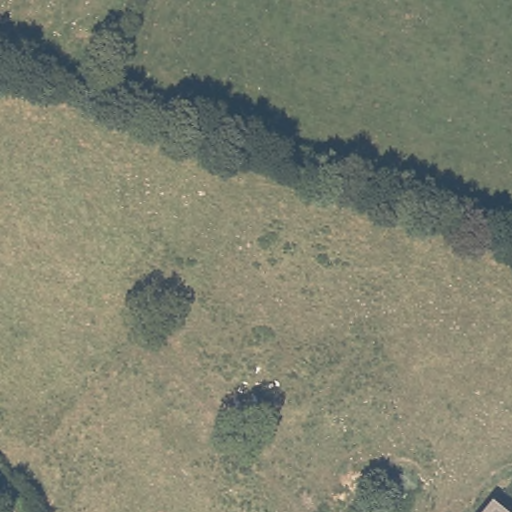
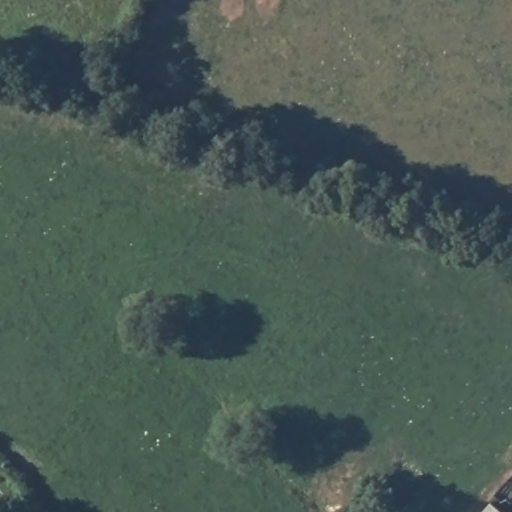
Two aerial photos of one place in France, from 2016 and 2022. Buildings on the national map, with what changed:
unchanged [(485,512),(492,503),(503,512),(485,512)]

